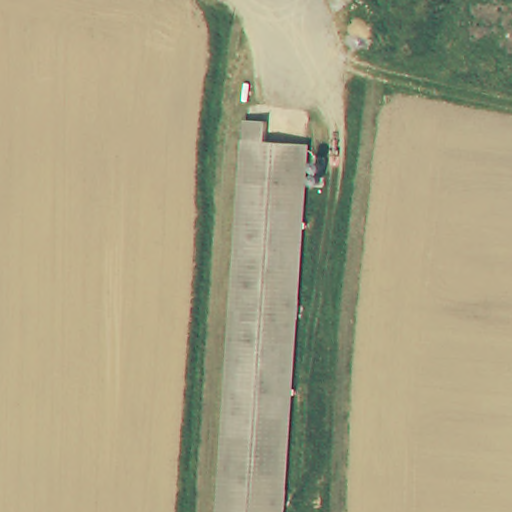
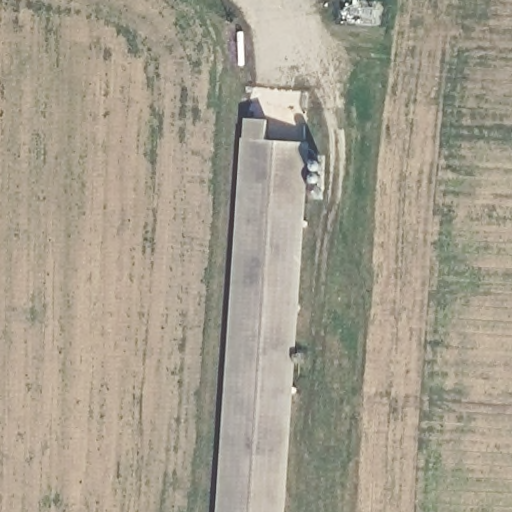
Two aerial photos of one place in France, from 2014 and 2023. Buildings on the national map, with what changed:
unchanged [(264,116),(264,135),(304,139),(281,482),(280,512),(220,512),(230,356),(244,115),(264,116)]

